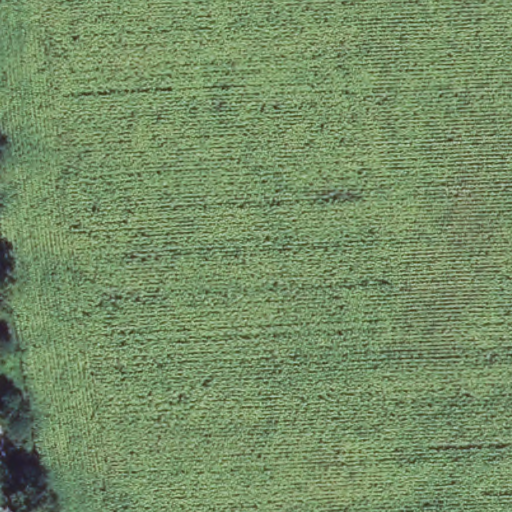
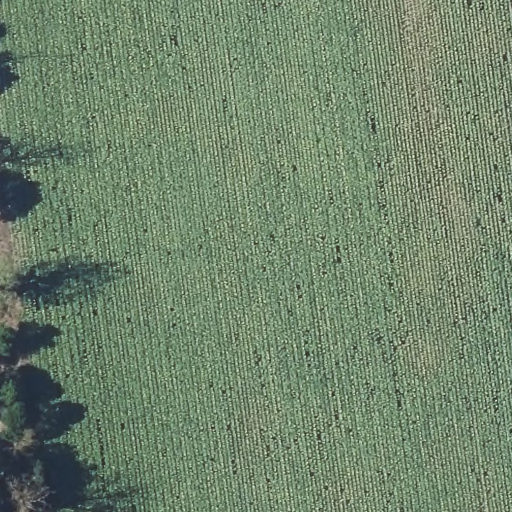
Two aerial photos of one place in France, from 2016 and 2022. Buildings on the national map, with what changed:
[]

